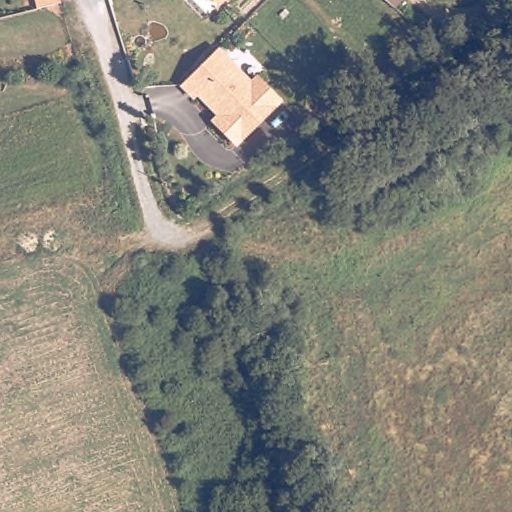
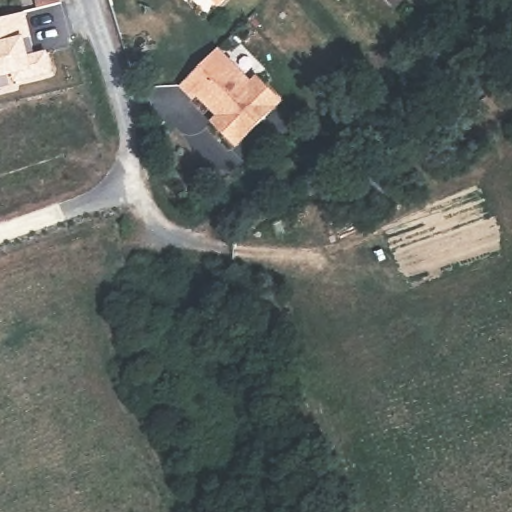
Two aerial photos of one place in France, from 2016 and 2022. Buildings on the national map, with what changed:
unchanged [(214,4),(210,0),(224,0),(217,6),(214,4)]
unchanged [(386,0),(396,0),(391,5),(386,0)]
new [(28,34),(21,36),(26,54),(44,50),(48,69),(13,78),(11,70),(0,73),(0,15),(22,10),(28,34)]
unchanged [(251,77),(257,70),(285,100),(237,148),(210,119),(213,114),(199,99),(197,102),(181,85),(221,47),(251,77)]

